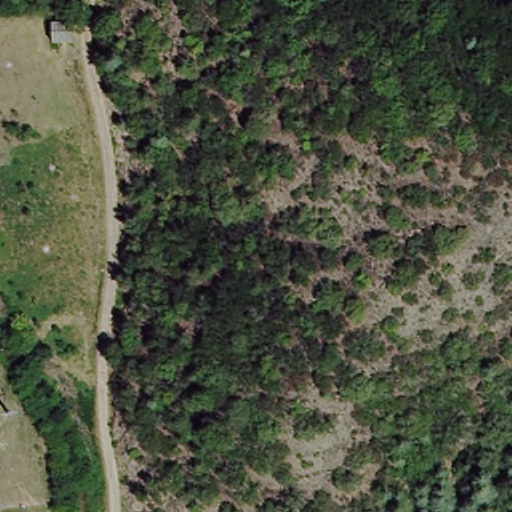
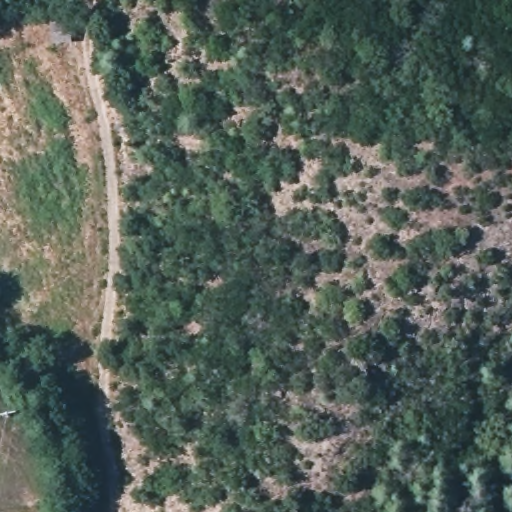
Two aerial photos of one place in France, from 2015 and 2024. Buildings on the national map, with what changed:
unchanged [(70,28),(70,49),(47,48),(46,28),(70,28)]

